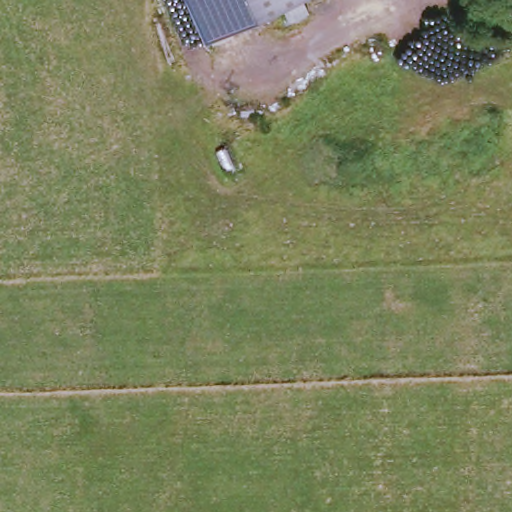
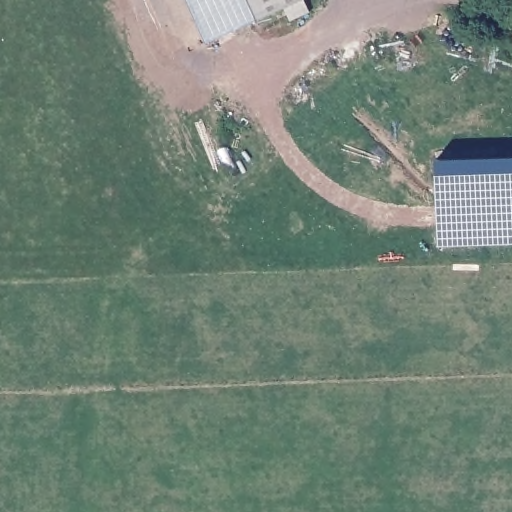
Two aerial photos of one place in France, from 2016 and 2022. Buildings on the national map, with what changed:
unchanged [(306,0),(312,16),(292,24),(285,9),(208,44),(188,0),(306,0)]
new [(436,159),(512,157),(512,244),(438,247),(436,159)]

